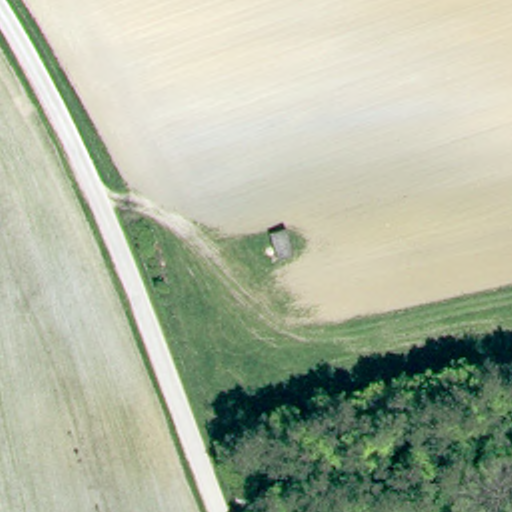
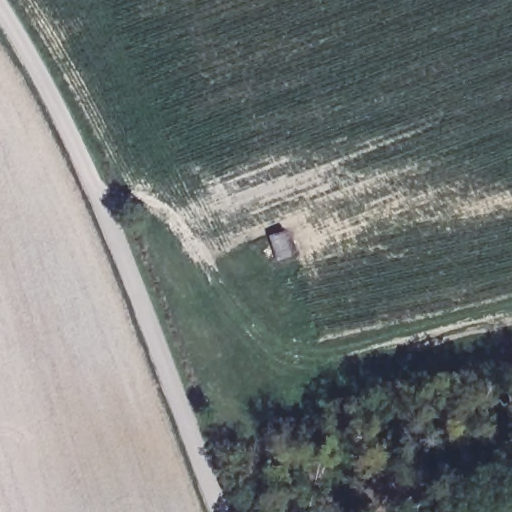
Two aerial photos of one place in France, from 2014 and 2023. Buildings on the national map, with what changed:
unchanged [(272,262),(267,227),(287,223),(292,251),(272,262)]

